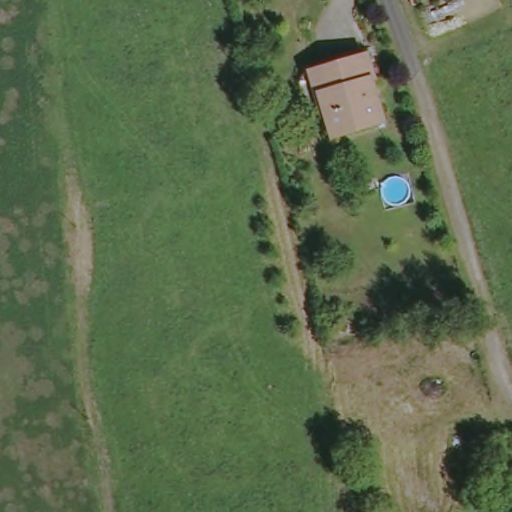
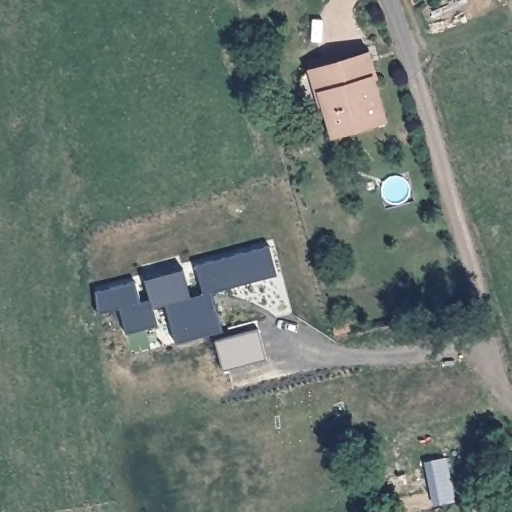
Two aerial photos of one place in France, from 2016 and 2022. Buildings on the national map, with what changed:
unchanged [(335,133),(327,90),(319,90),(314,67),(371,54),(388,119),(335,133)]
new [(167,305),(153,308),(158,325),(126,333),(120,308),(99,313),(96,292),(136,283),(141,302),(151,300),(146,280),(183,270),(191,297),(203,293),(197,266),(270,246),(278,274),(212,292),(222,330),(177,343),(167,305)]
new [(344,319),(347,330),(335,333),(331,323),(344,319)]
new [(216,341),(259,330),(266,358),(224,371),(216,341)]
new [(444,457),(453,501),(438,504),(429,460),(444,457)]

